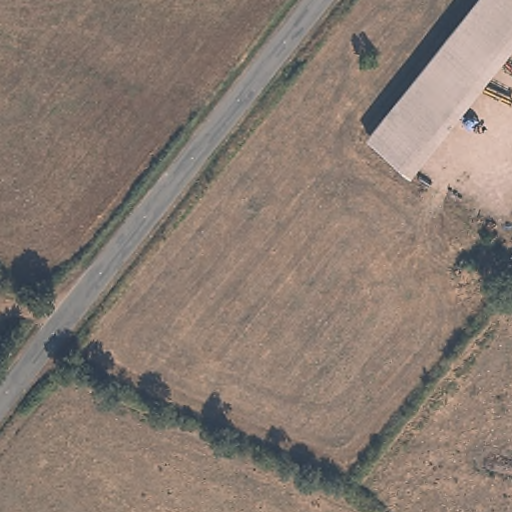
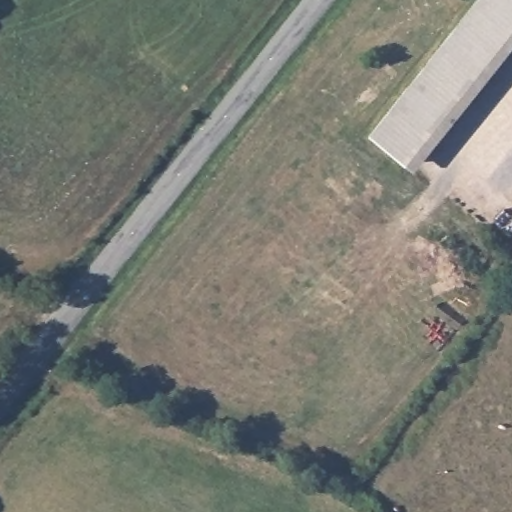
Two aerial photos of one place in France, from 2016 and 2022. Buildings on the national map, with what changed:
unchanged [(484,0),(512,0),(512,36),(407,168),(372,140),(484,0)]

